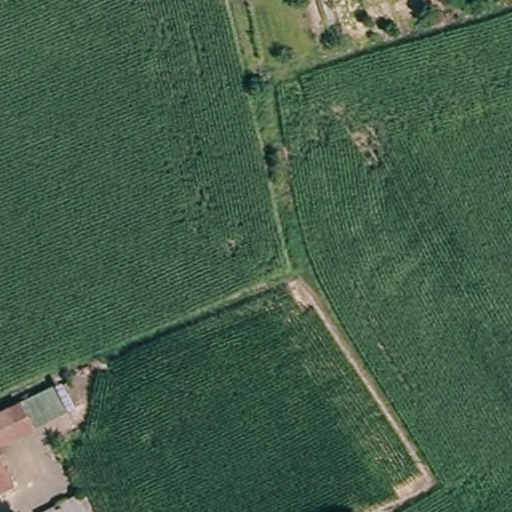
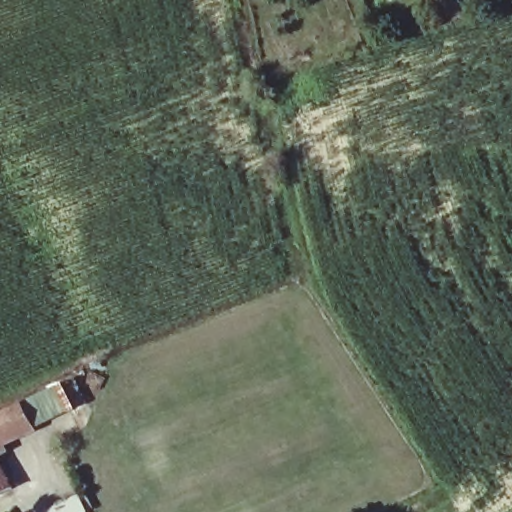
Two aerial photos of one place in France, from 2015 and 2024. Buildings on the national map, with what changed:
unchanged [(65,409),(30,426),(31,427),(0,443),(0,411),(54,386),(65,409)]
unchanged [(0,447),(1,449),(0,449),(0,447)]
unchanged [(0,489),(0,473),(6,486),(0,489)]
unchanged [(74,512),(42,512),(76,495),(83,508),(74,512)]

